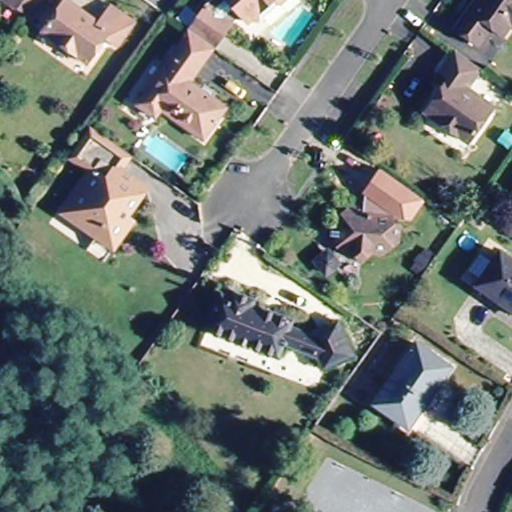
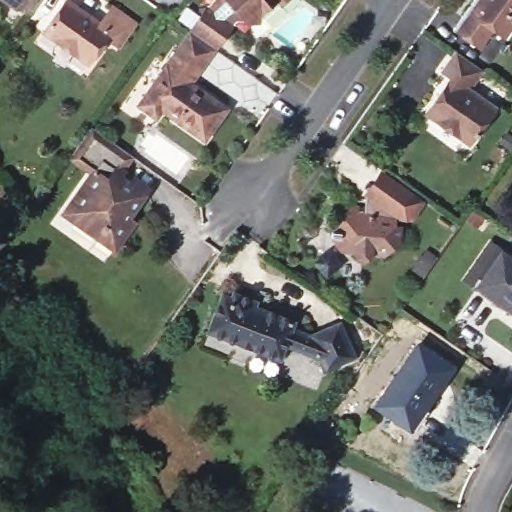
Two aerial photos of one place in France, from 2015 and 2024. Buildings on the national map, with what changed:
unchanged [(32,0),(26,9),(13,0),(32,0)]
unchanged [(109,0),(112,0),(136,17),(116,44),(106,36),(87,62),(71,50),(72,47),(56,35),(54,39),(38,28),(58,0),(68,0),(95,20),(109,0)]
unchanged [(211,0),(267,0),(258,8),(258,16),(252,13),(247,17),(238,9),(228,17),(230,19),(212,42),(189,25),(206,1),(208,2),(211,0)]
unchanged [(285,0),(281,4),(277,0),(285,0)]
unchanged [(511,25),(501,40),(493,34),(482,50),(451,28),(471,0),(480,0),(512,0),(512,25),(511,25)]
unchanged [(201,132),(159,101),(152,110),(135,97),(189,25),(212,42),(195,66),(188,77),(222,103),(201,132)]
unchanged [(463,88),(490,108),(466,140),(425,109),(447,79),(437,71),(453,49),(478,67),(463,88)]
unchanged [(100,231),(76,216),(72,222),(62,215),(72,200),(90,171),(67,155),(75,142),(88,125),(134,155),(124,171),(134,176),(151,187),(131,220),(135,222),(122,241),(116,251),(96,238),(100,231)]
unchanged [(426,201),(411,221),(404,222),(396,222),(396,206),(363,204),(364,193),(380,170),(426,201)]
unchanged [(404,222),(403,236),(396,236),(396,244),(383,255),(376,254),(366,261),(358,251),(346,251),(337,240),(337,217),(353,204),(396,206),(396,222),(404,222)]
unchanged [(480,287),(505,253),(512,258),(512,310),(480,287)]
unchanged [(239,295),(261,303),(258,310),(302,326),(298,334),(316,340),(343,326),(362,355),(335,370),(330,365),(293,350),(287,365),(211,335),(226,297),(236,301),(239,295)]
unchanged [(450,367),(408,423),(376,400),(417,343),(450,367)]

